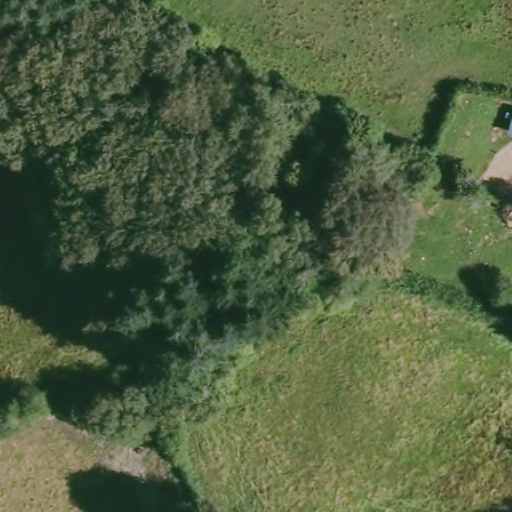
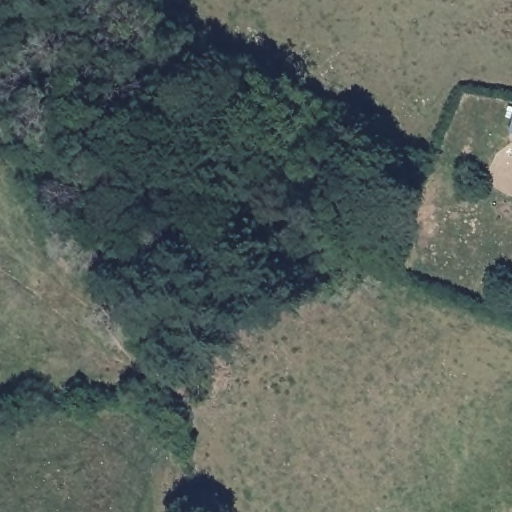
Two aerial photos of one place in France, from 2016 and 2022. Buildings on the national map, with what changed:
unchanged [(512,118),(512,132),(509,131),(512,118)]

